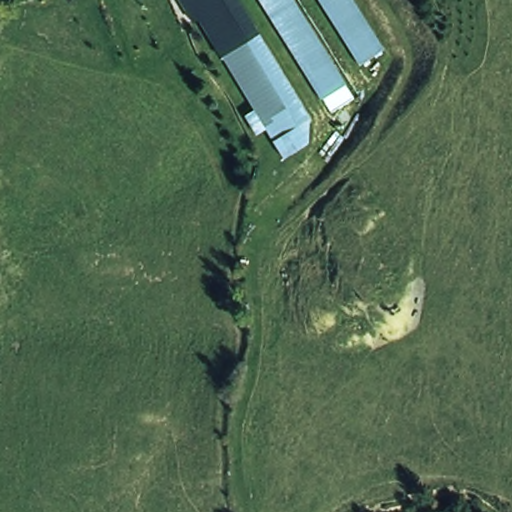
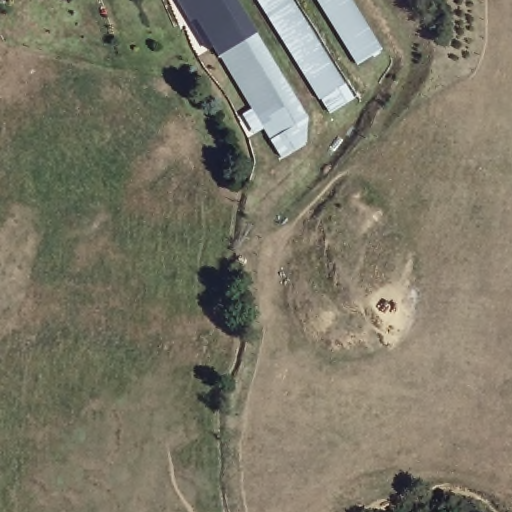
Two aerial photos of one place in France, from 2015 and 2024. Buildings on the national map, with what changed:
unchanged [(312,148),(288,161),(189,0),(238,0),(313,124),(301,131),(312,148)]
unchanged [(320,94),(263,0),(295,0),(344,78),(320,94)]
unchanged [(365,64),(324,0),(355,0),(385,50),(365,64)]

